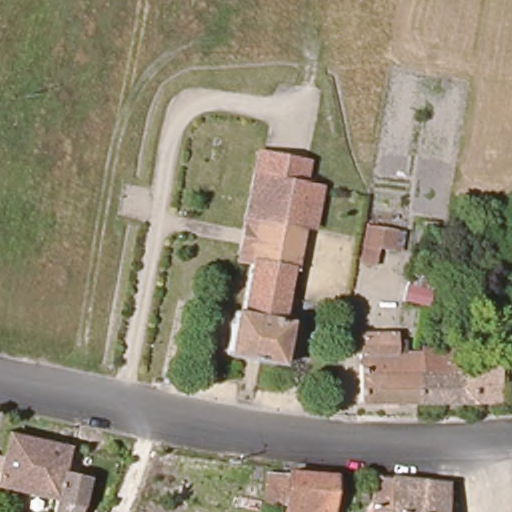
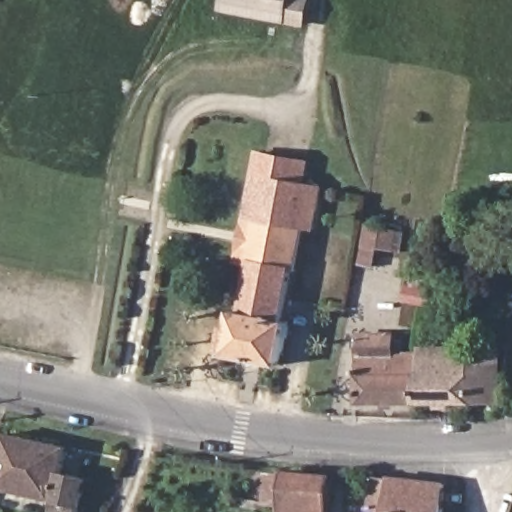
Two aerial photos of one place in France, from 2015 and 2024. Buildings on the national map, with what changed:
new [(223,0),(310,0),(306,27),(221,12),(223,0)]
unchanged [(290,267),(282,318),(288,319),(282,361),(227,351),(235,310),(242,311),(251,260),(249,260),(239,258),(240,252),(245,216),(255,159),(256,151),(271,153),(302,158),(301,168),(298,180),(317,183),(310,224),(301,222),(294,263),(293,268),(290,267)]
unchanged [(404,256),(377,254),(375,273),(357,270),(363,226),(410,235),(404,256)]
unchanged [(428,315),(401,310),(408,268),(436,272),(428,315)]
unchanged [(412,408),(352,405),(357,359),(360,336),(390,339),(388,361),(403,363),(402,376),(417,377),(412,408)]
unchanged [(440,351),(440,364),(490,369),(487,408),(412,408),(417,377),(418,364),(421,349),(440,351)]
unchanged [(0,491),(0,460),(2,460),(7,437),(71,451),(67,478),(86,482),(81,512),(55,512),(57,503),(0,491)]
unchanged [(336,477),(333,512),(289,512),(291,473),(336,477)]
unchanged [(452,484),(449,512),(378,512),(381,475),(452,484)]

